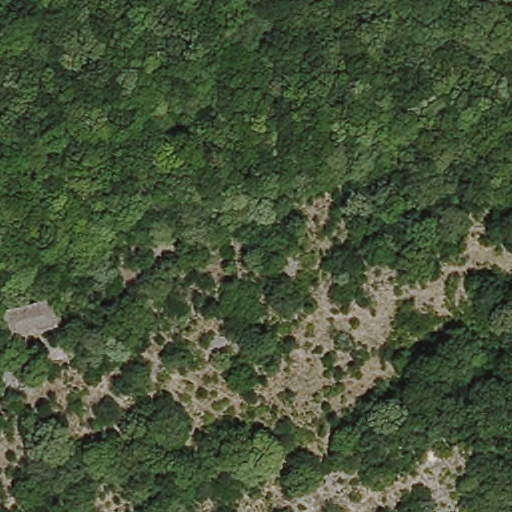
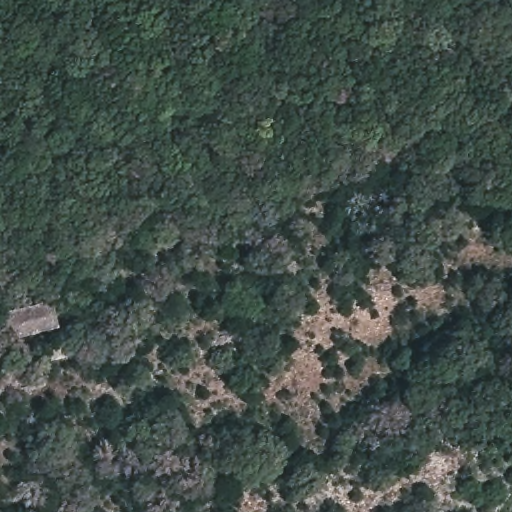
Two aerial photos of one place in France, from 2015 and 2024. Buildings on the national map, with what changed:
unchanged [(52,299),(58,330),(11,343),(7,308),(52,299)]

